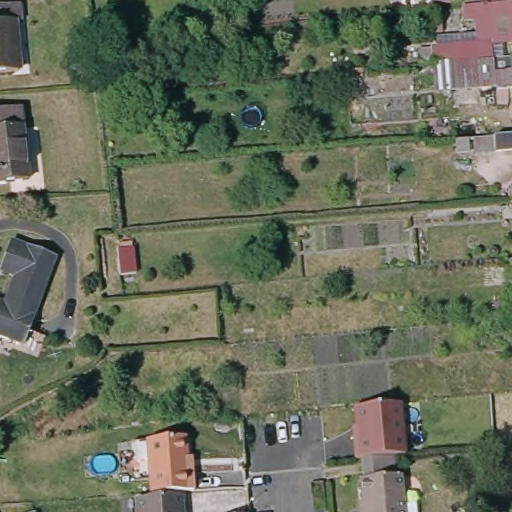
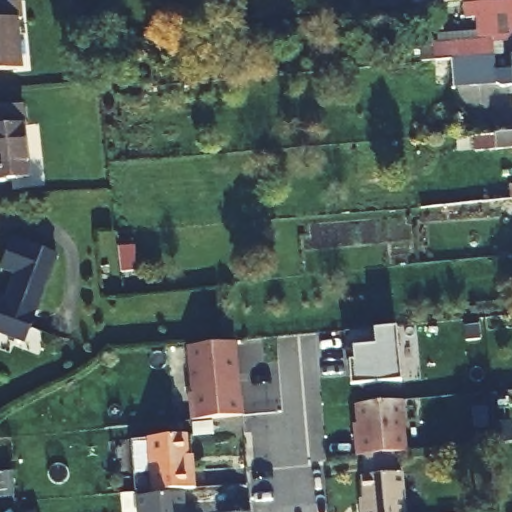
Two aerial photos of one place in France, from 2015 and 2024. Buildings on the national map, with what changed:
unchanged [(416,5),(414,6),(414,0),(480,0),(416,5)]
unchanged [(504,92),(503,85),(481,86),(460,87),(456,61),(435,63),(421,64),(420,47),(433,46),(477,43),(475,5),(512,2),(512,44),(495,46),(496,58),(512,56),(512,91),(504,92)]
unchanged [(21,26),(13,26),(18,78),(0,79),(0,12),(20,11),(21,26)]
unchanged [(0,117),(15,115),(23,188),(0,190),(0,117)]
unchanged [(512,128),(512,144),(491,146),(490,130),(512,128)]
unchanged [(453,135),(465,134),(465,145),(454,145),(453,135)]
unchanged [(508,202),(507,189),(512,188),(512,201),(508,202)]
unchanged [(0,332),(0,300),(5,301),(14,268),(0,263),(10,233),(56,250),(25,342),(0,332)]
unchanged [(115,252),(134,251),(135,275),(118,276),(115,252)]
new [(395,326),(400,379),(350,384),(345,331),(395,326)]
new [(243,415),(191,420),(188,393),(190,393),(186,347),(236,342),(243,415)]
unchanged [(368,460),(356,460),(350,402),(400,400),(405,457),(396,457),(368,460)]
unchanged [(154,489),(154,483),(153,478),(151,440),(151,436),(190,434),(190,437),(191,467),(196,467),(196,475),(197,479),(197,487),(154,489)]
unchanged [(364,480),(370,480),(368,460),(396,457),(398,478),(402,477),(405,512),(360,512),(360,503),(366,502),(364,480)]
unchanged [(181,492),(183,512),(138,512),(136,495),(181,492)]
unchanged [(248,508),(248,512),(214,512),(214,511),(248,508)]

